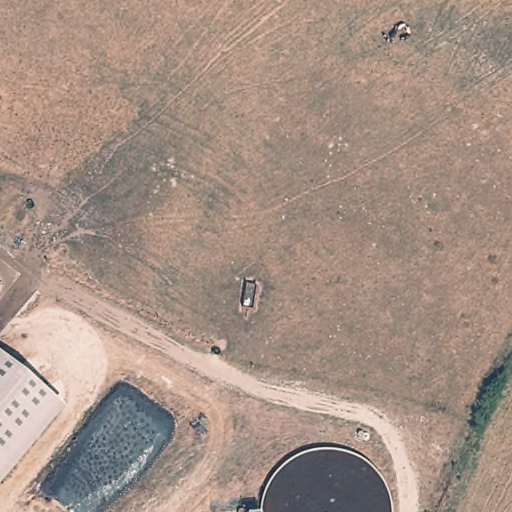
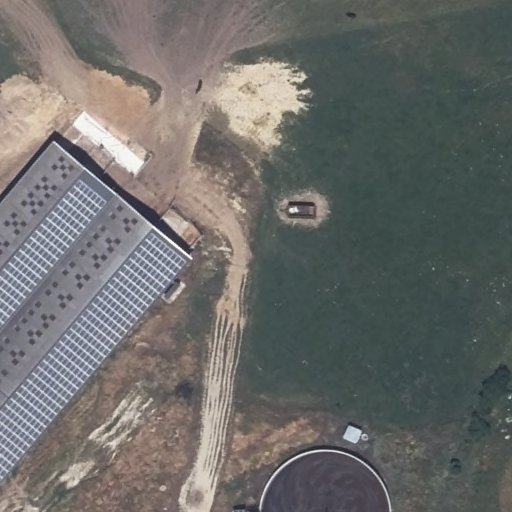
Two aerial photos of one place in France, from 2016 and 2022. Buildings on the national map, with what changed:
new [(197,259),(63,412),(0,360),(0,209),(58,141),(197,259)]
unchanged [(14,469),(0,486),(0,360),(63,412),(14,469)]

